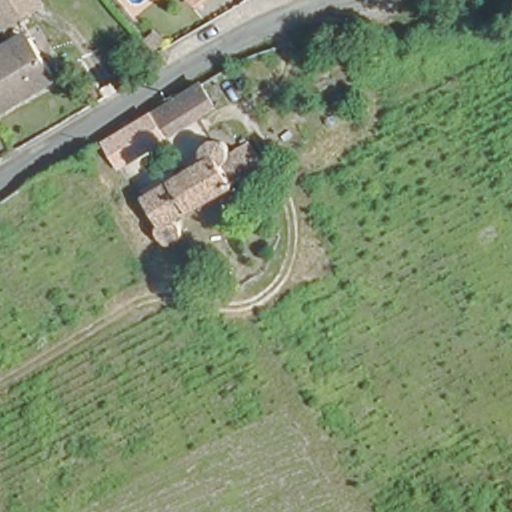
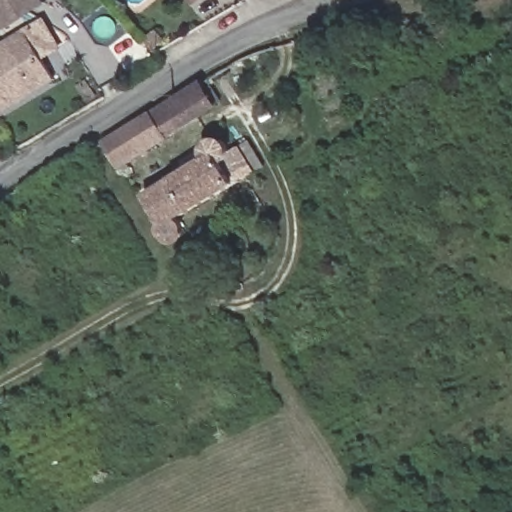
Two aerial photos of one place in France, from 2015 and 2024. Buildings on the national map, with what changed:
unchanged [(20,12),(0,25),(0,0),(39,0),(20,12)]
unchanged [(144,29),(135,37),(128,29),(136,21),(144,29)]
unchanged [(15,34),(27,27),(32,35),(56,76),(0,111),(0,44),(7,39),(15,34)]
unchanged [(212,103),(165,133),(153,111),(200,81),(212,103)]
unchanged [(165,133),(116,164),(103,143),(153,111),(165,133)]
unchanged [(210,139),(216,148),(227,143),(235,157),(243,172),(232,179),(162,221),(169,233),(156,238),(149,241),(143,237),(140,232),(145,229),(129,199),(162,180),(159,173),(172,166),(175,172),(193,163),(188,152),(190,143),(196,137),(204,136),(210,139)]

